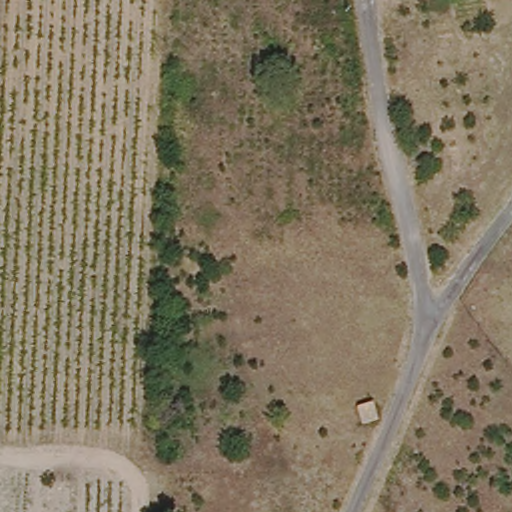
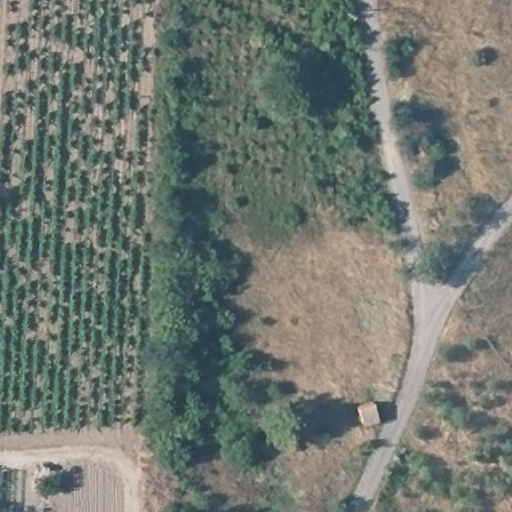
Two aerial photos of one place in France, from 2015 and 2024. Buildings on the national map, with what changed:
unchanged [(363,424),(358,417),(355,407),(369,401),(377,418),(363,424)]

